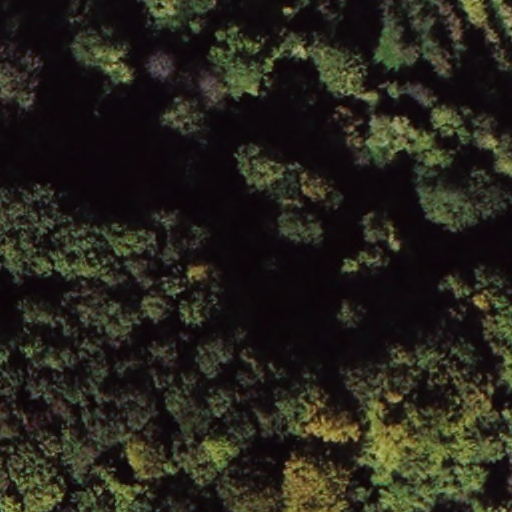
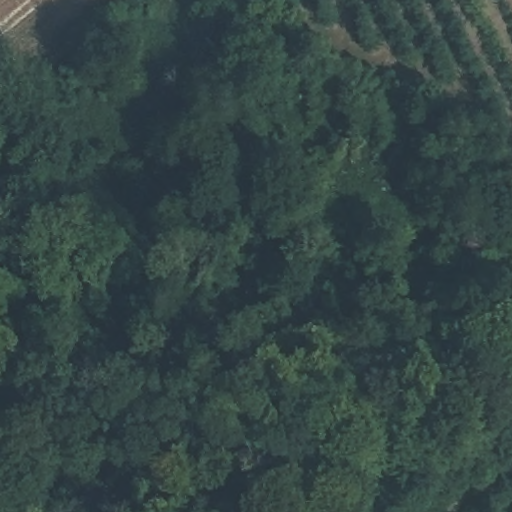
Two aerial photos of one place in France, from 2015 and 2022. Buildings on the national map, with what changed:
unchanged [(474,235),(487,240),(492,226),(512,234),(512,239),(510,244),(512,245),(512,269),(467,254),(474,235)]
unchanged [(32,228),(63,234),(59,250),(30,245),(32,228)]

